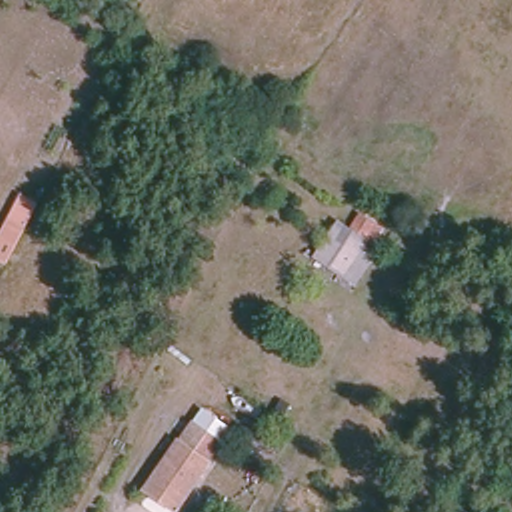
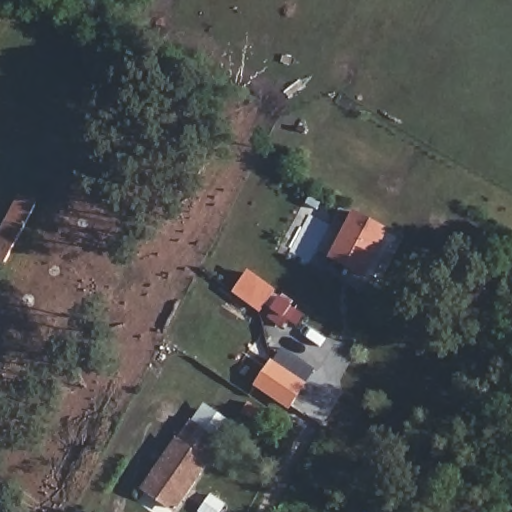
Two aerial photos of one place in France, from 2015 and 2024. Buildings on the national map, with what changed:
unchanged [(0,262),(0,221),(18,189),(40,201),(5,265),(0,262)]
unchanged [(356,284),(315,257),(339,219),(349,228),(361,212),(389,228),(356,284)]
new [(260,313),(233,294),(249,270),(278,291),(260,313)]
new [(310,381),(290,411),(254,387),(275,357),(310,381)]
unchanged [(174,512),(171,512),(142,492),(179,438),(209,458),(174,512)]

